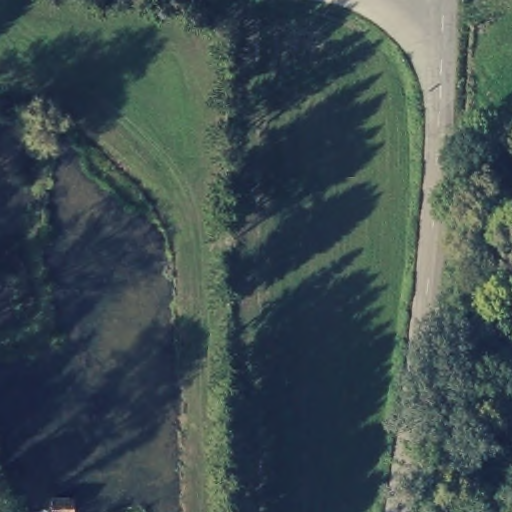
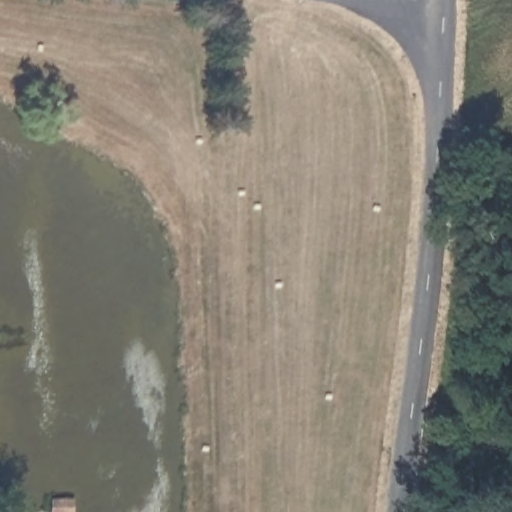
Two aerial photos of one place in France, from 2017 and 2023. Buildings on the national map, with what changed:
unchanged [(76,496),(77,509),(54,508),(55,494),(76,496)]

